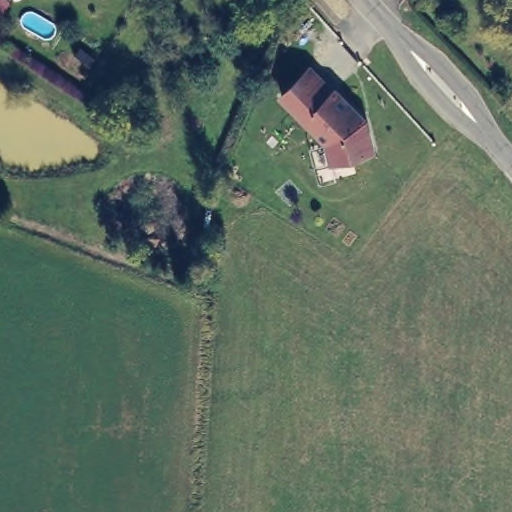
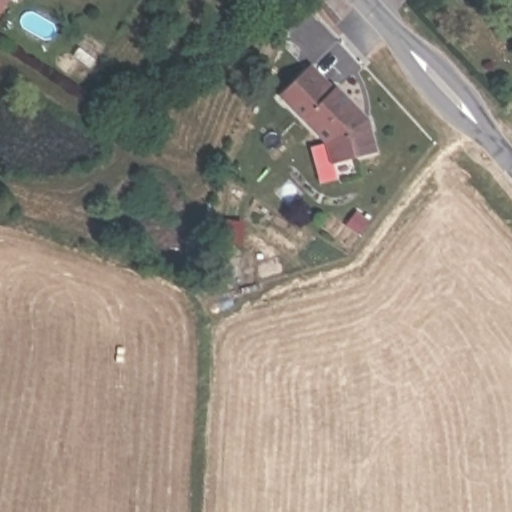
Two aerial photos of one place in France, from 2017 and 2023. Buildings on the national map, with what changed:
unchanged [(317,65),(373,118),(382,156),(332,165),(328,145),(285,95),(317,65)]

